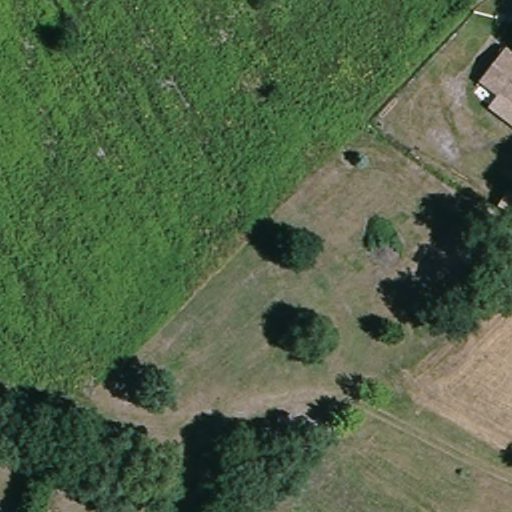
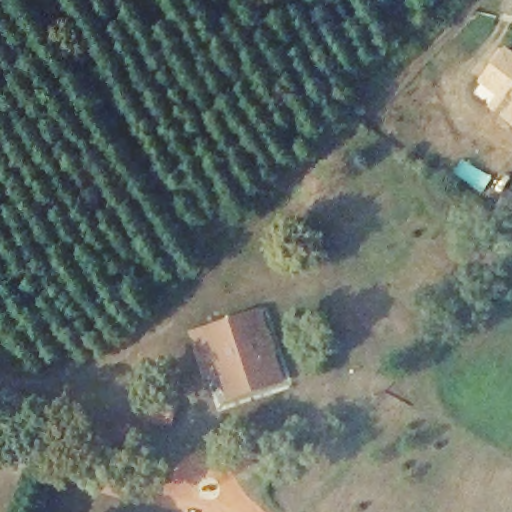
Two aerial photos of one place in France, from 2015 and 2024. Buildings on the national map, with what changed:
unchanged [(512,103),(484,81),(505,54),(512,59),(512,103)]
new [(502,95),(512,102),(512,124),(490,108),(502,95)]
new [(264,311),(285,382),(228,401),(221,377),(206,382),(190,332),(264,311)]

